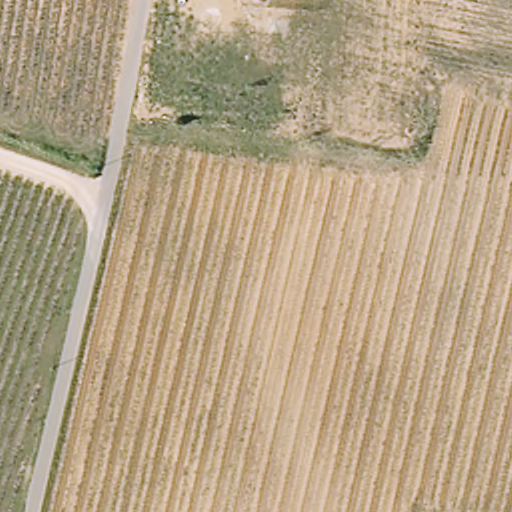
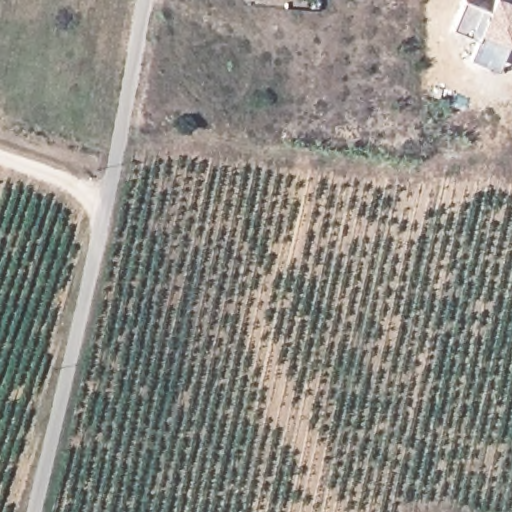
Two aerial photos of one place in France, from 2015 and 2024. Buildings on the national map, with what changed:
new [(494,0),(512,0),(512,45),(507,43),(499,69),(471,56),(479,37),(454,27),(465,0),(468,0),(490,8),(494,0)]

